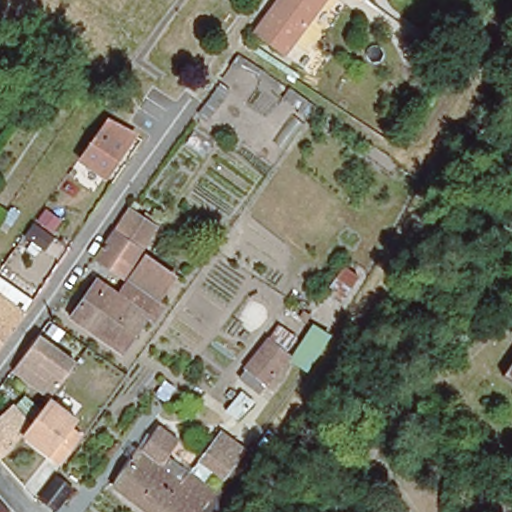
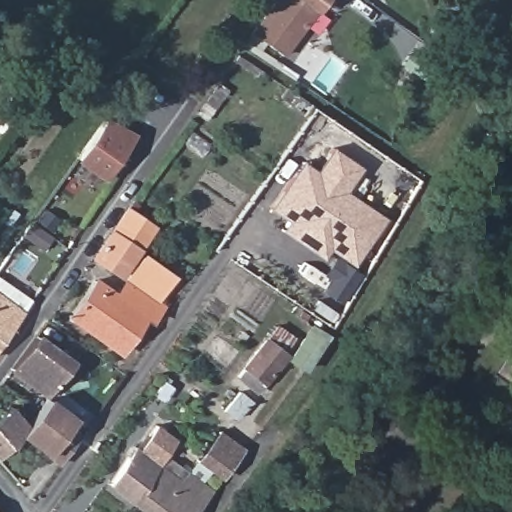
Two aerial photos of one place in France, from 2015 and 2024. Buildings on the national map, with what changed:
unchanged [(275,0),(324,0),(282,56),(250,34),(275,0)]
unchanged [(197,128),(219,99),(225,90),(233,97),(227,106),(206,134),(197,128)]
unchanged [(67,105),(57,123),(44,115),(54,97),(67,105)]
unchanged [(104,182),(80,163),(110,124),(134,143),(104,182)]
new [(346,191),(385,218),(352,267),(361,273),(340,304),(320,291),(327,280),(322,276),(336,254),(329,250),(322,260),(280,231),(287,222),(268,209),(302,160),(316,169),(331,147),(361,167),(346,191)]
unchanged [(156,229),(120,278),(93,258),(129,209),(156,229)]
unchanged [(60,225),(51,237),(42,229),(51,218),(60,225)]
unchanged [(0,257),(7,248),(15,253),(0,273),(0,257)]
unchanged [(87,287),(92,280),(115,297),(140,264),(147,269),(169,284),(140,323),(136,321),(111,354),(95,342),(64,319),(87,287)]
unchanged [(0,340),(0,305),(17,317),(0,340)]
unchanged [(301,358),(289,349),(311,319),(323,327),(301,358)]
unchanged [(287,331),(279,342),(285,346),(261,378),(240,362),(271,320),(287,331)]
unchanged [(38,343),(73,369),(49,401),(15,376),(38,343)]
unchanged [(502,378),(512,365),(512,385),(502,378)]
unchanged [(248,398),(233,417),(219,407),(234,387),(248,398)]
unchanged [(59,465),(22,439),(48,403),(84,430),(59,465)]
unchanged [(161,464),(134,503),(112,484),(128,461),(140,448),(144,449),(159,428),(177,441),(161,464)]
unchanged [(0,429),(6,436),(16,448),(12,454),(0,464),(0,429)]
unchanged [(222,476),(201,460),(222,432),(242,447),(222,476)]
unchanged [(146,512),(134,503),(161,464),(206,498),(197,512),(146,512)]

